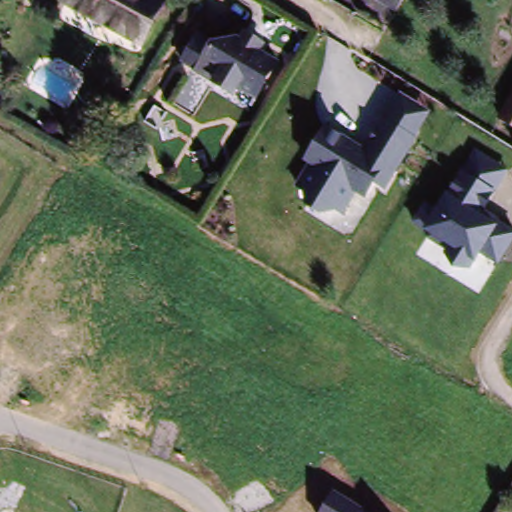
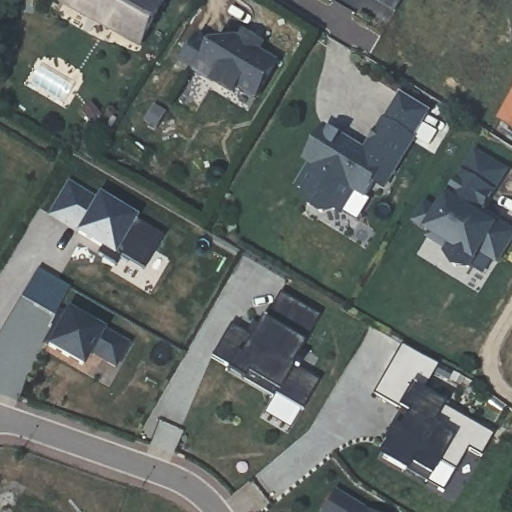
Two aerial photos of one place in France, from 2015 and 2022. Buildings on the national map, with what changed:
unchanged [(154,0),(159,3),(136,43),(66,3),(67,0),(154,0)]
unchanged [(371,0),(401,0),(393,13),(371,0)]
unchanged [(215,80),(196,69),(214,39),(235,34),(240,36),(244,29),(264,41),(260,49),(277,59),(256,96),(238,85),(234,91),(215,80)]
unchanged [(495,119),(512,89),(512,129),(495,119)]
unchanged [(386,194),(375,188),(368,200),(355,194),(345,216),(321,218),(292,189),(307,165),(302,161),(322,126),(363,149),(398,94),(430,114),(386,194)]
unchanged [(484,218),(498,224),(512,231),(512,245),(497,266),(480,258),(478,263),(471,260),(462,274),(445,264),(452,251),(445,247),(442,253),(426,243),(429,235),(412,226),(434,186),(446,193),(471,149),(510,174),(484,218)]
new [(120,257),(115,264),(102,257),(107,249),(50,217),(68,186),(96,203),(97,200),(163,239),(144,271),(120,257)]
new [(231,328),(250,339),(260,322),(265,324),(281,297),(320,319),(293,365),(300,369),(297,372),(320,384),(302,414),(252,384),(255,380),(235,369),(232,373),(212,361),(231,328)]
new [(58,322),(62,324),(68,314),(128,349),(115,369),(90,355),(82,368),(45,346),(58,322)]
new [(402,347),(440,369),(431,383),(422,398),(493,439),(480,461),(467,454),(442,496),(424,485),(429,478),(409,466),(405,474),(378,458),(385,447),(382,446),(392,428),(397,431),(407,414),(375,395),(394,362),(402,347)]
unchanged [(334,489),(370,512),(320,512),(334,489)]

